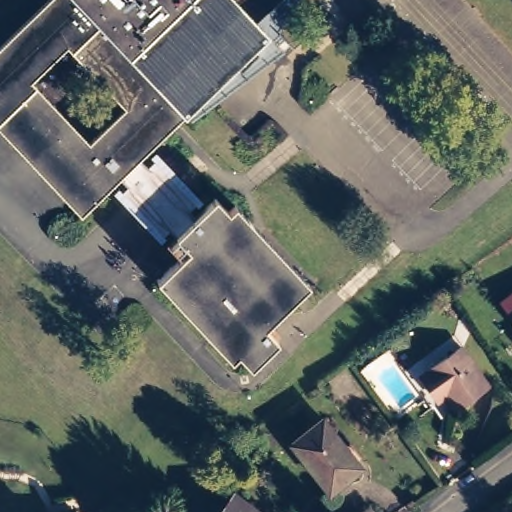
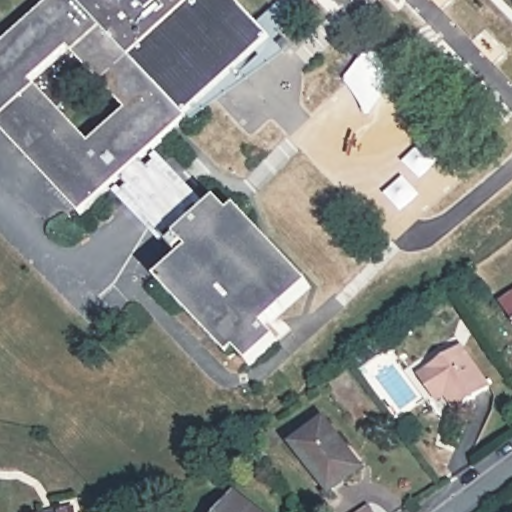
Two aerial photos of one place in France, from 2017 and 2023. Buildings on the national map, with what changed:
unchanged [(173,227),(166,233),(125,189),(131,184),(123,176),(84,213),(0,125),(0,49),(51,0),(241,0),(274,34),(144,157),(151,165),(159,157),(200,201),(193,208),(200,216),(221,196),(233,210),(241,203),(314,281),(269,324),(282,338),(254,364),(241,351),(234,357),(158,278),(193,248),(173,227)]
unchanged [(512,316),(510,314),(512,312),(512,316)]
unchanged [(420,372),(424,369),(462,343),(489,381),(456,404),(447,392),(438,397),(420,372)]
unchanged [(319,416),(357,464),(326,490),(287,442),(319,416)]
unchanged [(259,503),(252,512),(207,512),(231,481),(259,503)]
unchanged [(377,512),(359,512),(371,504),(377,512)]
unchanged [(69,512),(49,512),(68,508),(69,512)]

